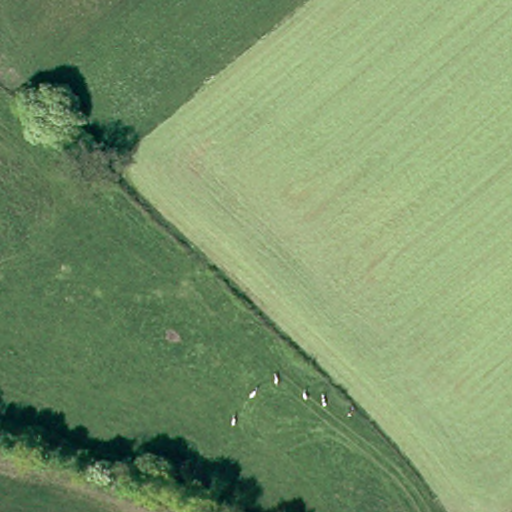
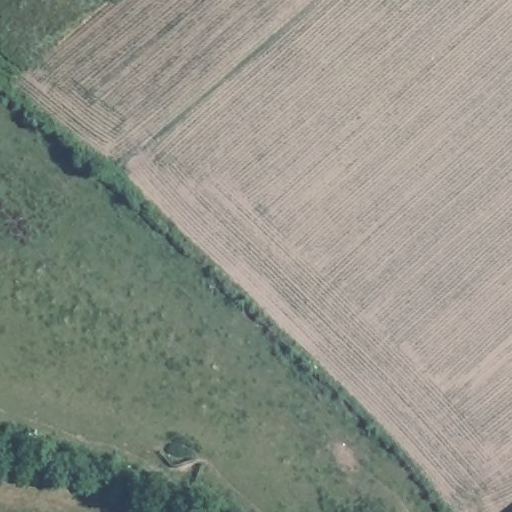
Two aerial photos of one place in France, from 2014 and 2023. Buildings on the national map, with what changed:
unchanged [(158,462),(168,447),(195,457),(185,474),(158,462)]

